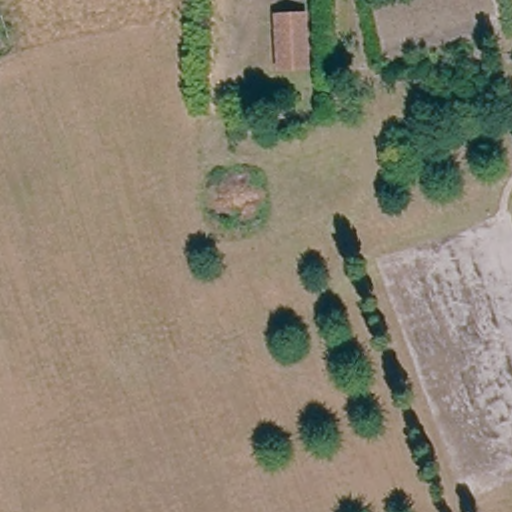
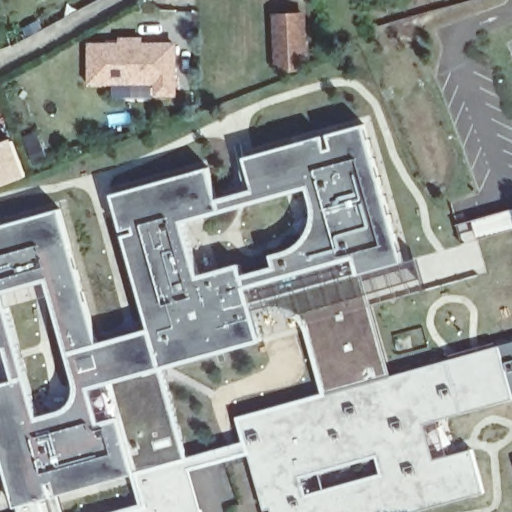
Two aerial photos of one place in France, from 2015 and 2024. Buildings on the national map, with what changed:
unchanged [(306,69),(269,68),(270,14),(300,12),(306,69)]
new [(154,95),(154,82),(89,82),(89,42),(177,41),(176,93),(154,95)]
new [(361,271),(390,373),(499,344),(512,395),(424,421),(434,457),(471,448),(482,489),(399,512),(266,512),(249,449),(188,467),(201,512),(108,512),(142,503),(133,469),(60,492),(65,512),(19,512),(17,502),(0,442),(0,382),(16,378),(8,345),(0,347),(0,289),(0,224),(61,206),(98,343),(150,329),(114,192),(209,166),(217,199),(255,189),(246,156),(323,135),(325,148),(333,146),(329,132),(364,123),(403,260),(361,271)]
new [(0,186),(0,141),(11,136),(25,177),(0,186)]
new [(512,208),(512,230),(478,239),(473,219),(512,208)]
new [(512,395),(499,344),(512,340),(512,395)]

